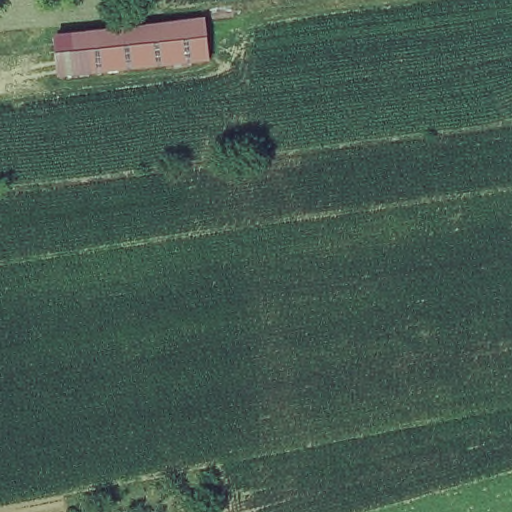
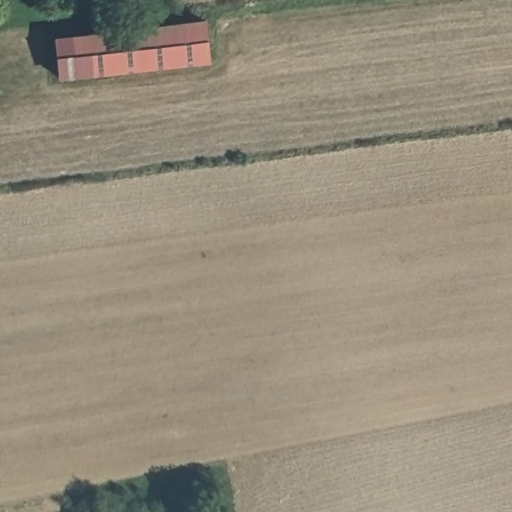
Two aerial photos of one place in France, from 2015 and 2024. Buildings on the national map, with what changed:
unchanged [(209,60),(60,78),(54,40),(204,20),(209,60)]

